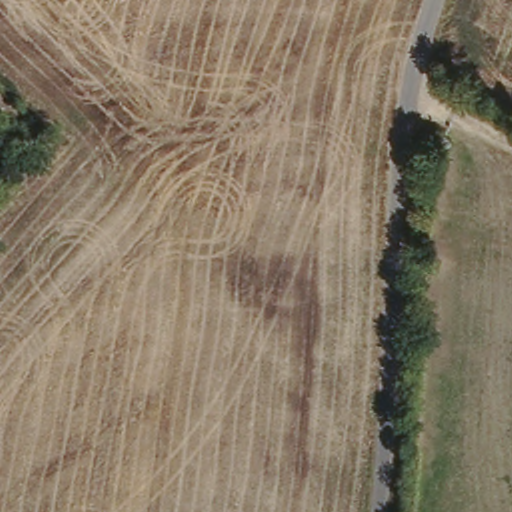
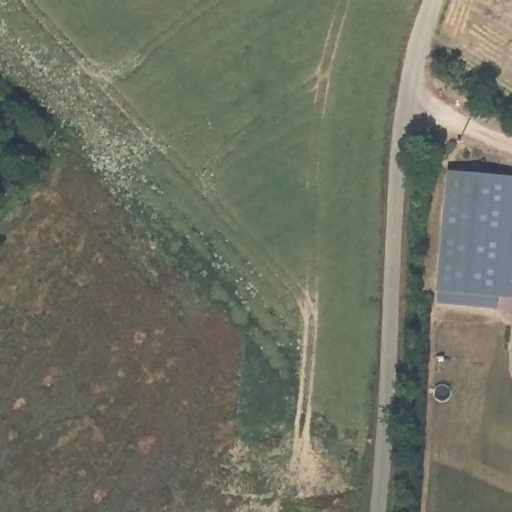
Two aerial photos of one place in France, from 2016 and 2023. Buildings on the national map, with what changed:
new [(512,181),(512,301),(498,301),(498,312),(438,307),(439,297),(449,173),(512,181)]

